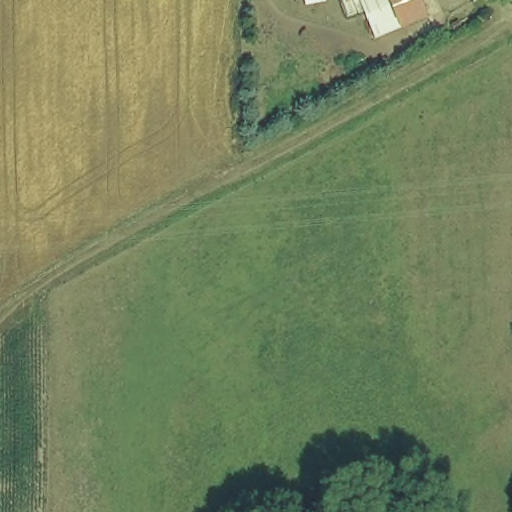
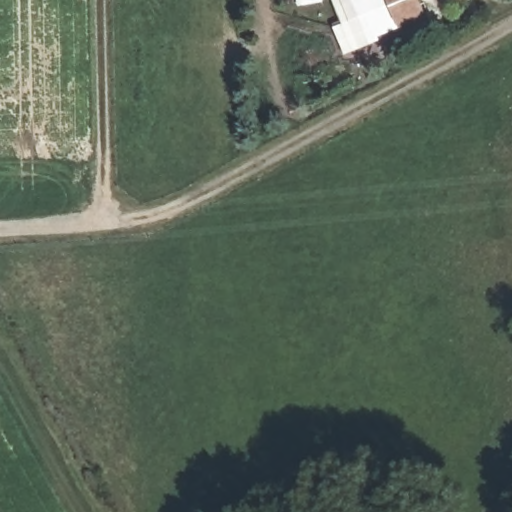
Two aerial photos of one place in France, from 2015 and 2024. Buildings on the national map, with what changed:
new [(402,35),(344,56),(331,25),(339,22),(330,0),(387,0),(402,35)]
unchanged [(402,35),(387,0),(424,0),(434,22),(402,35)]

